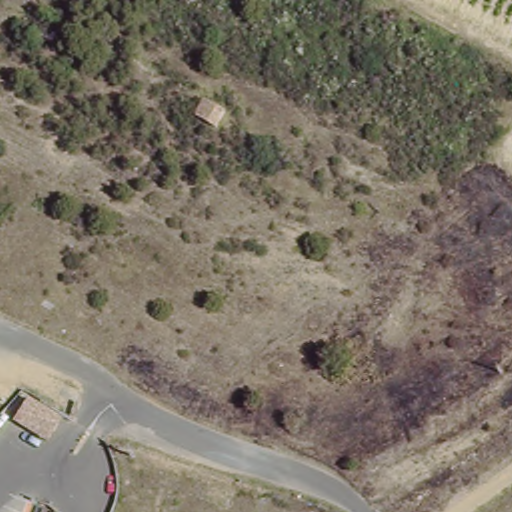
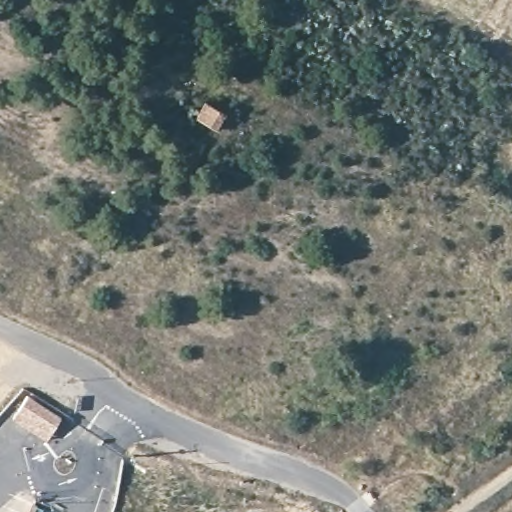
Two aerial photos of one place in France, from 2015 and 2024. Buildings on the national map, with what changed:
unchanged [(191,123),(203,100),(225,111),(213,135),(191,123)]
unchanged [(60,417),(46,439),(13,418),(27,396),(60,417)]

